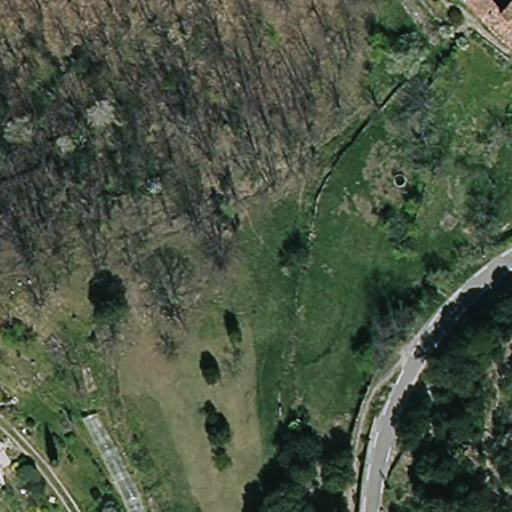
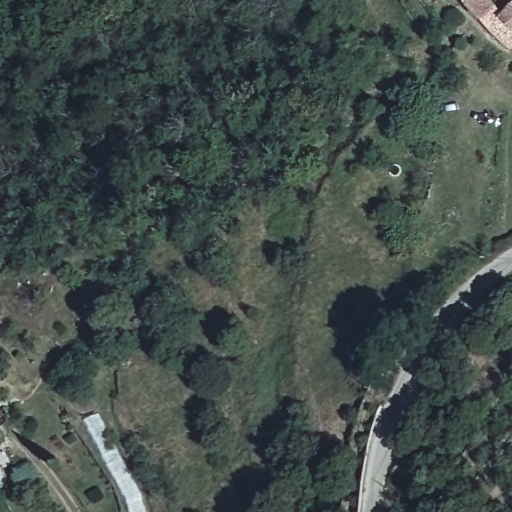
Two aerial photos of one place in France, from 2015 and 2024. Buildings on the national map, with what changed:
unchanged [(512,0),(512,39),(474,0),(512,0)]
unchanged [(1,429),(5,452),(0,453),(0,429),(1,429)]

